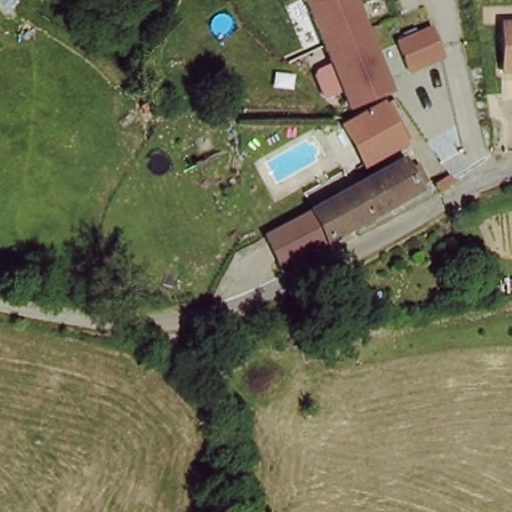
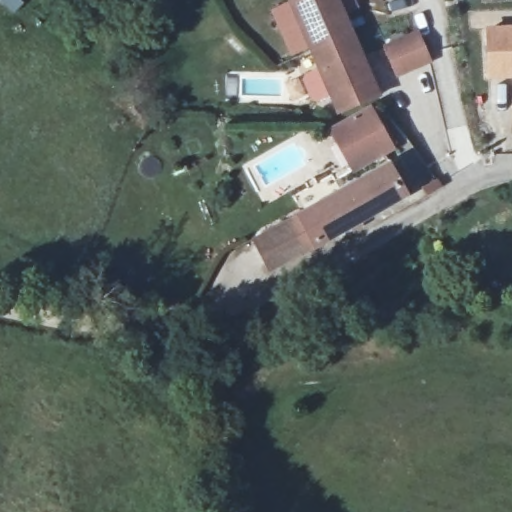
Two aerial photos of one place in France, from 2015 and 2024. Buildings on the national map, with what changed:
unchanged [(341,115),(290,0),(344,0),(385,96),(341,115)]
unchanged [(490,80),(489,26),(512,27),(512,80),(490,80)]
unchanged [(435,61),(397,78),(384,45),(422,31),(435,61)]
unchanged [(367,182),(404,161),(420,192),(328,241),(306,253),(290,224),(313,212),(332,201),(337,198),(327,180),(342,172),(357,163),(367,182)]
unchanged [(298,257),(283,265),(268,237),(284,228),(287,226),(302,255),(298,257)]

